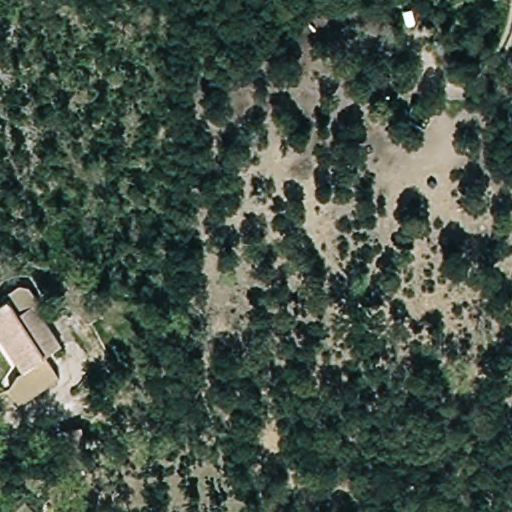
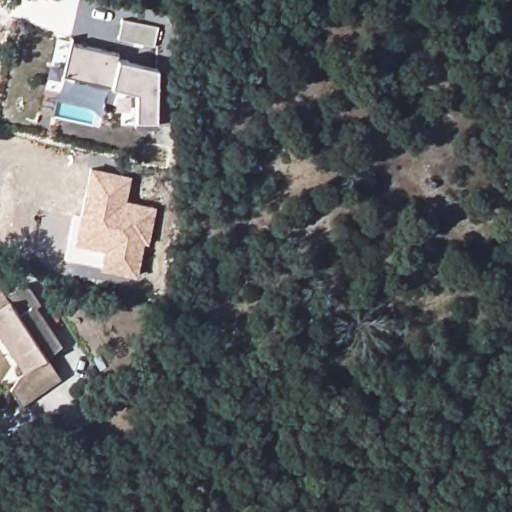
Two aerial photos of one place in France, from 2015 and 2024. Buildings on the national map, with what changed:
new [(159,27),(154,46),(116,39),(121,19),(159,27)]
new [(62,74),(70,43),(119,55),(118,59),(158,68),(157,120),(134,120),(135,92),(110,86),(62,74)]
new [(127,201),(157,207),(149,244),(144,244),(137,277),(99,268),(103,250),(74,244),(90,167),(132,176),(127,201)]
unchanged [(44,358),(60,379),(22,407),(11,392),(17,378),(23,373),(0,343),(0,308),(19,293),(59,347),(44,358)]
unchanged [(28,512),(10,512),(21,503),(28,512)]

